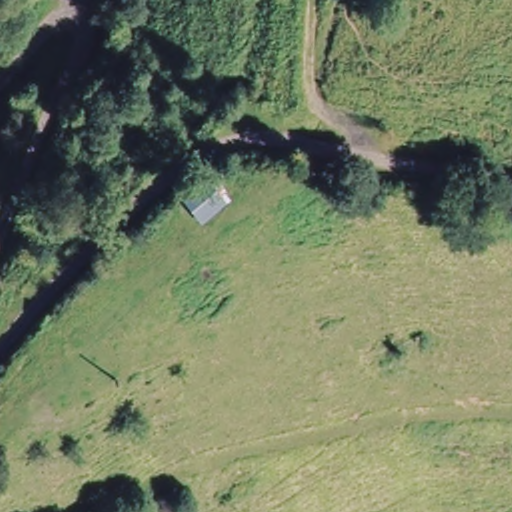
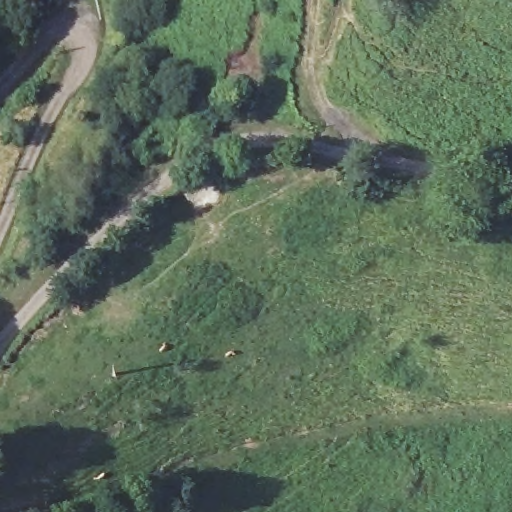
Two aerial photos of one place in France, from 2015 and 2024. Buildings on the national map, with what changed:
unchanged [(196,223),(176,195),(197,173),(219,200),(196,223)]

